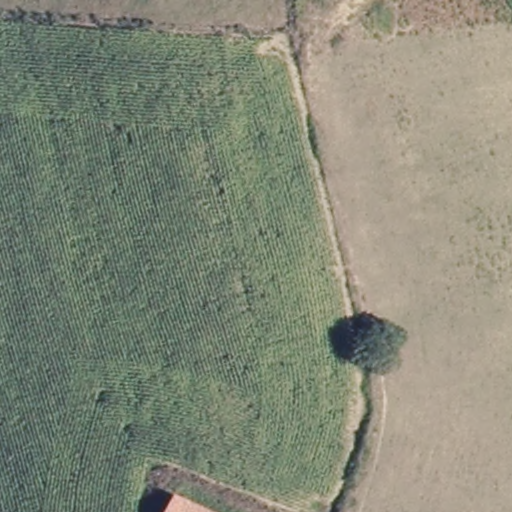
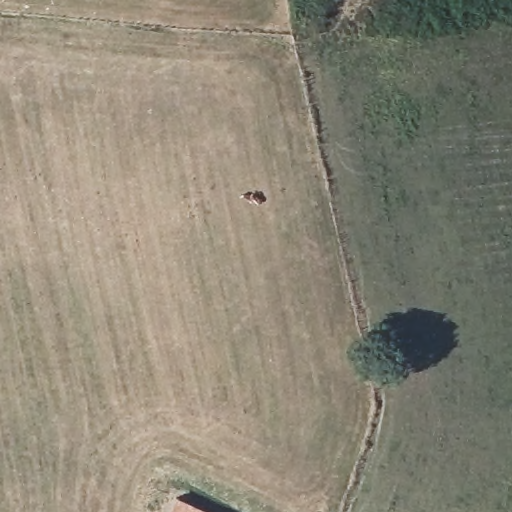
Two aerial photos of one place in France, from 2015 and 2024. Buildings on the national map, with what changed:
unchanged [(175,502),(201,512),(172,512),(175,502)]

